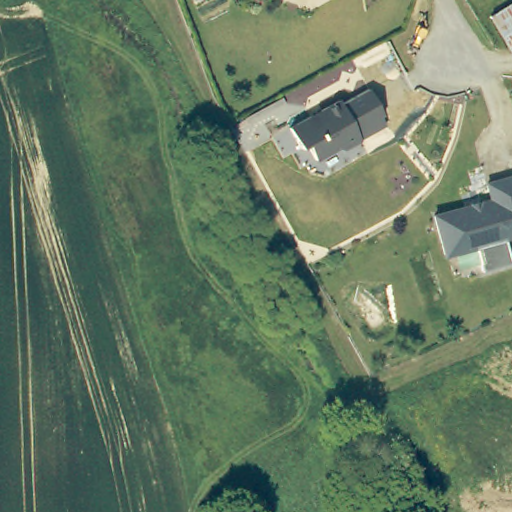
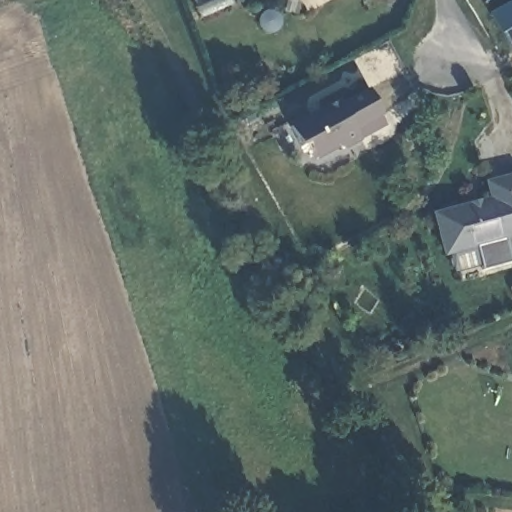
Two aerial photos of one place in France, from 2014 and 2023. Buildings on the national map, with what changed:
unchanged [(512,5),(512,51),(492,17),(512,5)]
unchanged [(335,103),(363,88),(377,115),(375,116),(380,125),(337,149),(331,147),(308,158),(301,143),(294,147),(283,127),(305,115),(316,110),(333,100),(335,103)]
unchanged [(445,256),(434,216),(472,206),(475,212),(493,207),(488,185),(512,178),(512,238),(506,240),(512,265),(481,272),(475,248),(445,256)]

